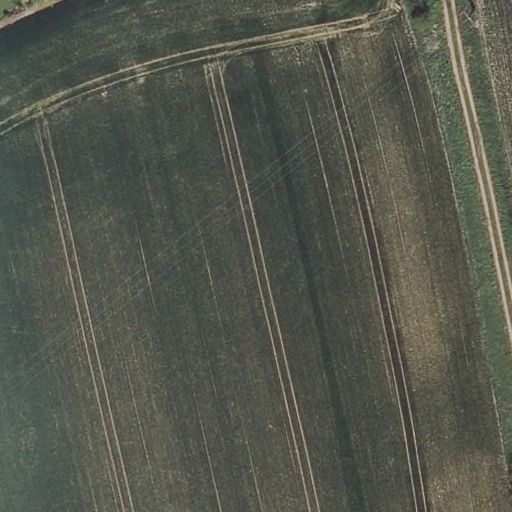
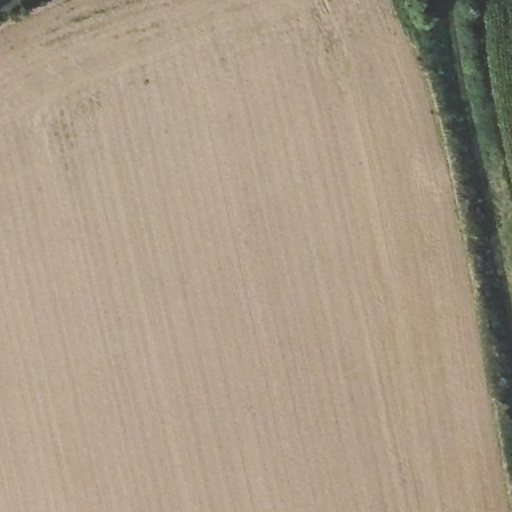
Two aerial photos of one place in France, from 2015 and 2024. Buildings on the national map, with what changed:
[]

